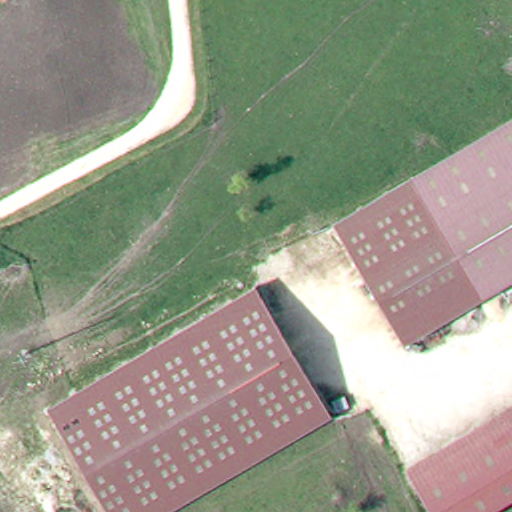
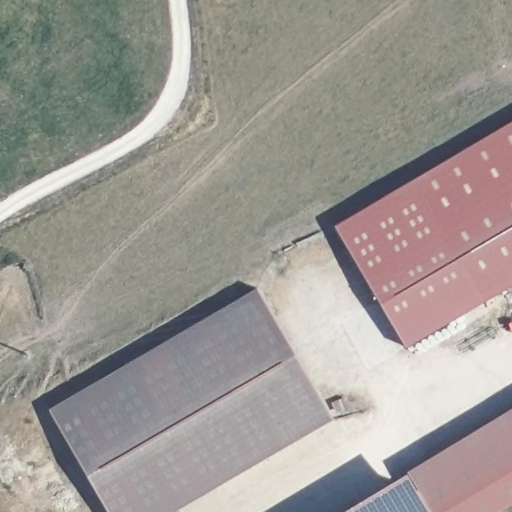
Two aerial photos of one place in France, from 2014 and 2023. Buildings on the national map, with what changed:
unchanged [(407,345),(337,222),(512,121),(512,283),(407,345)]
unchanged [(330,417),(171,512),(111,512),(48,408),(257,287),(330,417)]
unchanged [(429,460),(512,409),(512,501),(494,512),(431,512),(407,472),(429,460)]
new [(431,512),(340,512),(407,472),(431,512)]

